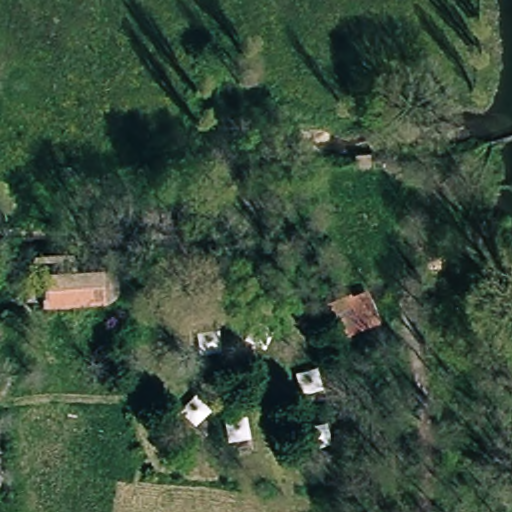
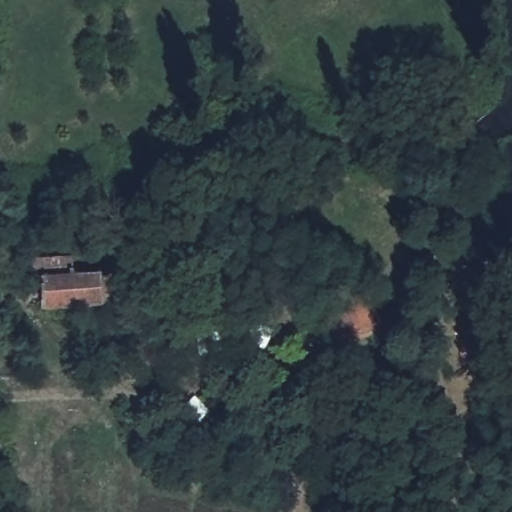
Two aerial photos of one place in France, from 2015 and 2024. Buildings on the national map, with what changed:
unchanged [(113,304),(100,303),(57,307),(36,308),(37,274),(102,270),(106,270),(121,275),(124,283),(121,301),(113,304)]
unchanged [(365,292),(381,323),(334,341),(319,305),(365,292)]

